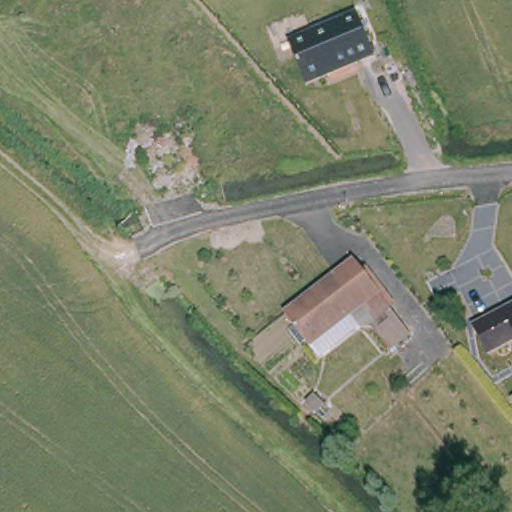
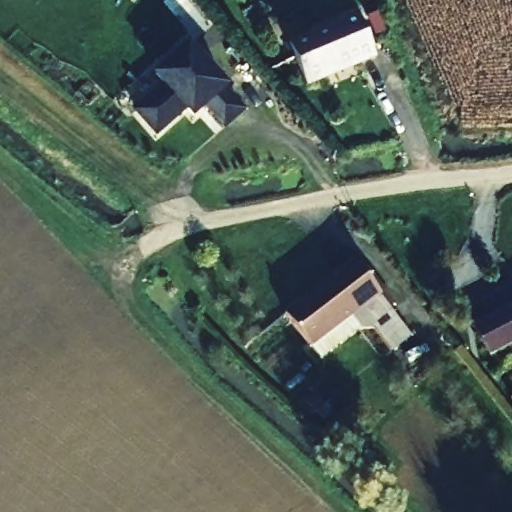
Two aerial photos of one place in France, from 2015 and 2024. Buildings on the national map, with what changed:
unchanged [(357,10),(375,52),(305,82),(288,39),(357,10)]
new [(242,115),(225,130),(209,112),(191,126),(184,117),(156,140),(124,104),(185,50),(242,115)]
unchanged [(352,256),(387,300),(369,312),(359,302),(305,339),(280,308),(352,256)]
unchanged [(387,300),(412,333),(392,350),(373,327),(369,312),(387,300)]
unchanged [(504,307),(507,311),(512,308),(512,343),(490,354),(474,326),(504,307)]
unchanged [(510,397),(512,396),(512,399),(510,397)]

